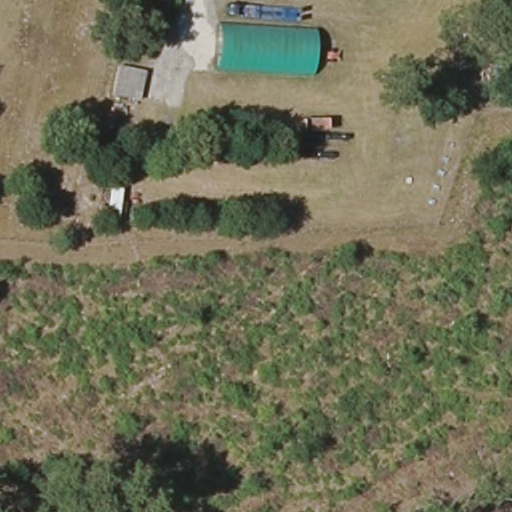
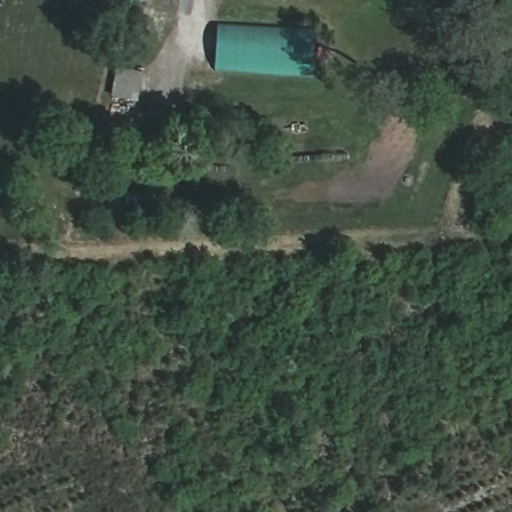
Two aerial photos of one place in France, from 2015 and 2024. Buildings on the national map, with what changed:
unchanged [(214,24),(311,30),(310,73),(213,68),(214,24)]

